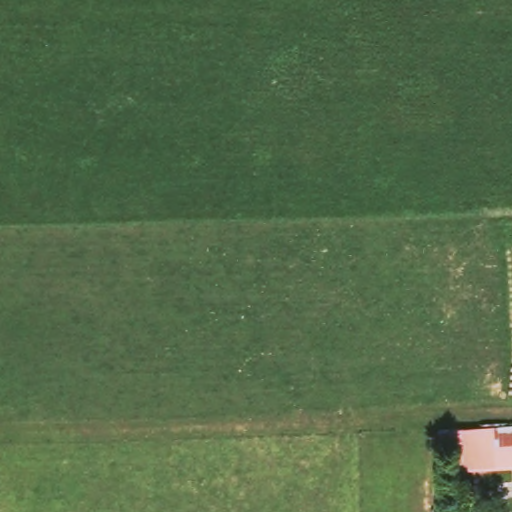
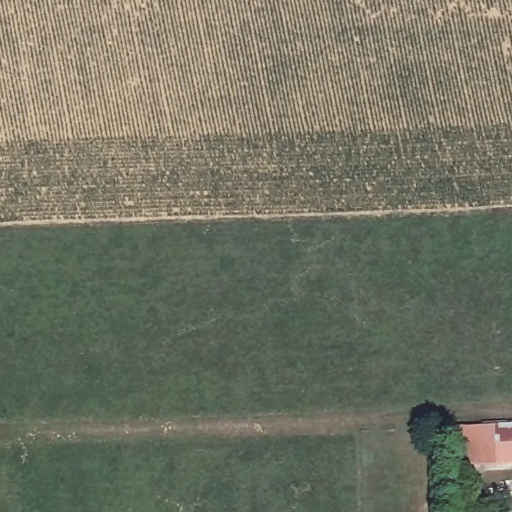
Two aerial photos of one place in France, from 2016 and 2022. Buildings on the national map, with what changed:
unchanged [(455,426),(512,424),(512,467),(458,470),(455,426)]

